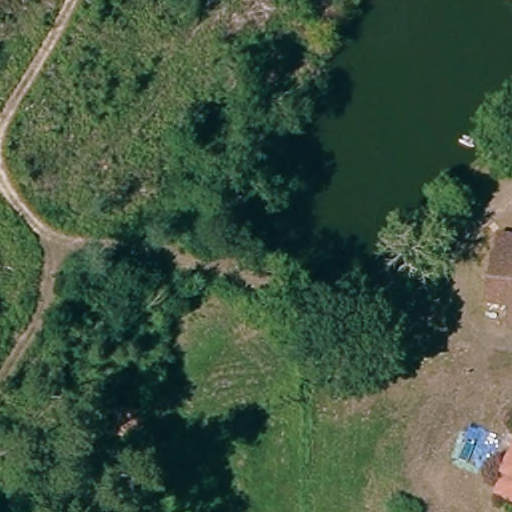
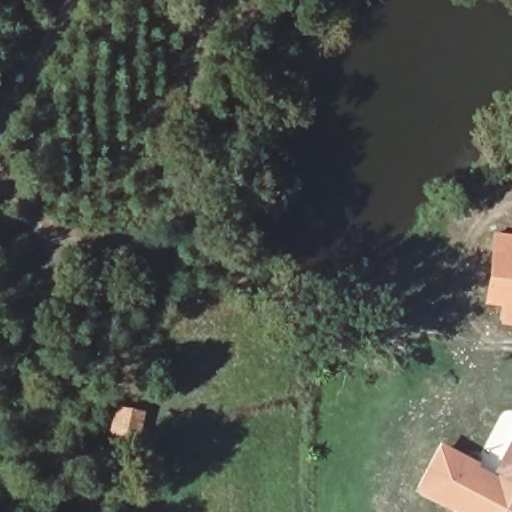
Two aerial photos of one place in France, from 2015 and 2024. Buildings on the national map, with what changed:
unchanged [(510,304),(488,300),(495,250),(496,232),(512,234),(512,324),(508,323),(510,304)]
new [(480,468),(503,479),(502,483),(496,494),(512,502),(512,512),(455,512),(415,491),(441,443),(482,464),(480,468)]
unchanged [(506,474),(498,470),(512,444),(512,502),(496,494),(506,474)]

